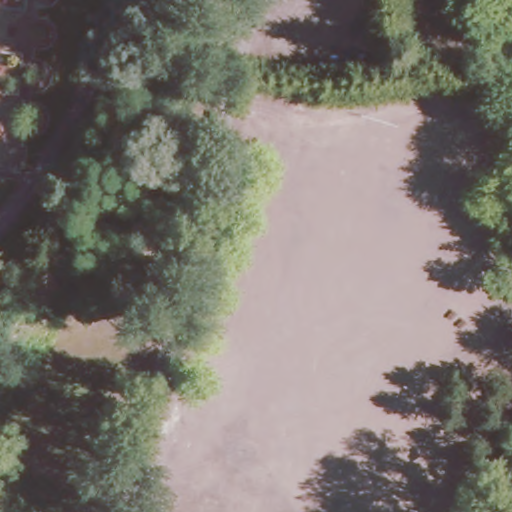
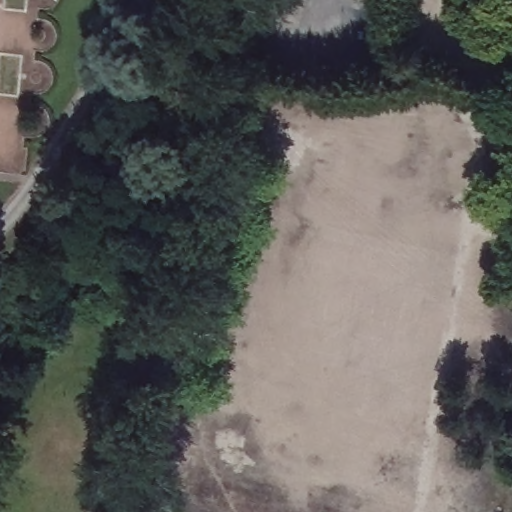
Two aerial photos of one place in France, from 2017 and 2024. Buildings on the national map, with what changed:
unchanged [(422,34),(423,35),(424,37),(423,39),(422,40),(420,40),(419,39),(418,37),(418,36),(419,34),(420,34),(421,34),(422,34)]
unchanged [(445,36),(446,37),(446,39),(446,40),(445,41),(443,42),(442,41),(441,40),(440,39),(441,37),(442,36),(443,36),(445,36)]
unchanged [(466,38),(467,39),(467,41),(467,42),(466,42),(464,43),(462,42),(461,41),(462,39),(463,37),(464,37),(466,38)]
unchanged [(490,41),(491,42),(491,44),(491,45),(489,47),(487,47),(486,45),(485,45),(485,44),(486,42),(487,41),(488,41),(490,41)]

